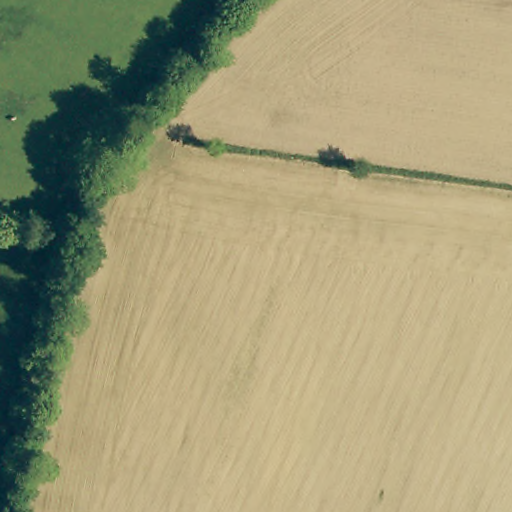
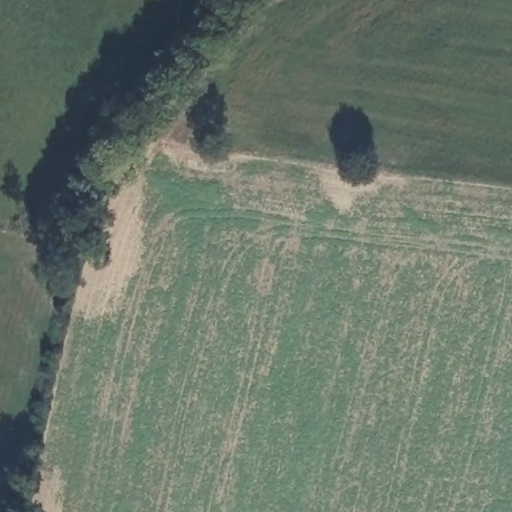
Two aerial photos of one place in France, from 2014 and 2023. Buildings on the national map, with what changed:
[]

